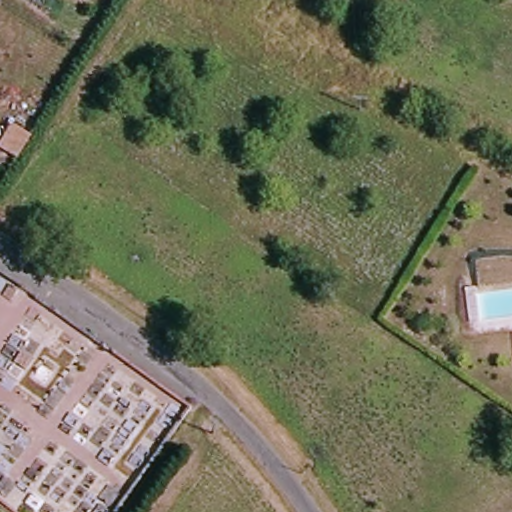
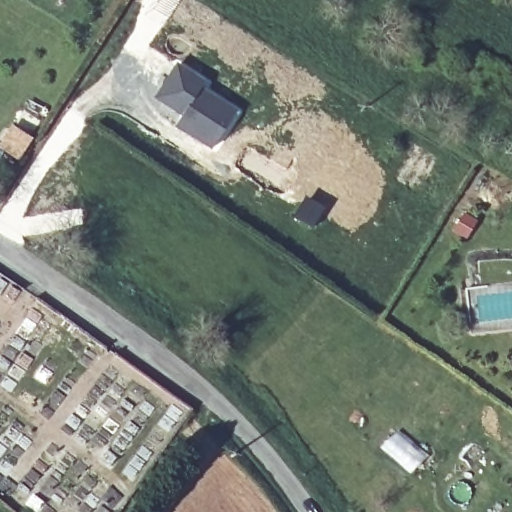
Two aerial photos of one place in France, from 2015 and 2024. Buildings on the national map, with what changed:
new [(204,82),(201,89),(237,112),(214,148),(177,124),(184,114),(167,104),(157,97),(163,87),(177,65),(204,82)]
new [(32,136),(12,171),(0,163),(0,147),(14,125),(32,136)]

